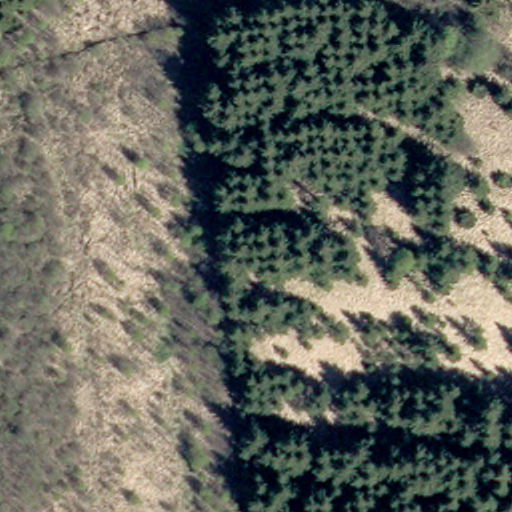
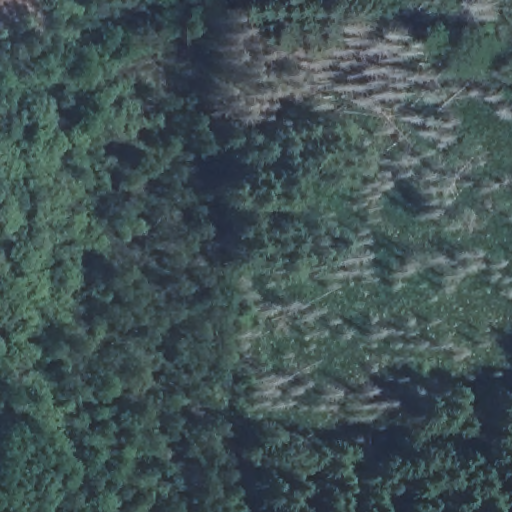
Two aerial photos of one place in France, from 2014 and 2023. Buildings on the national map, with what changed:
unchanged [(400,230),(427,234),(424,258),(398,255),(400,230)]

